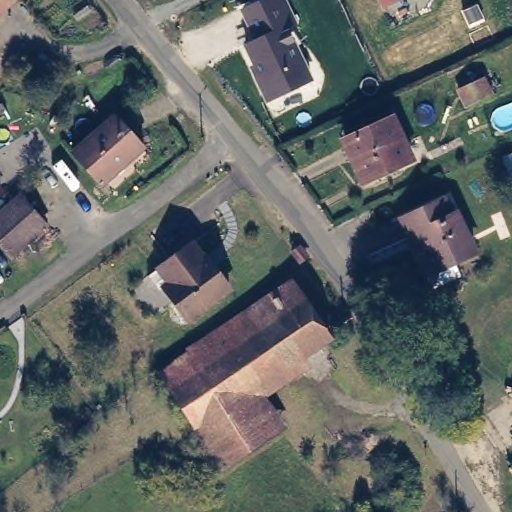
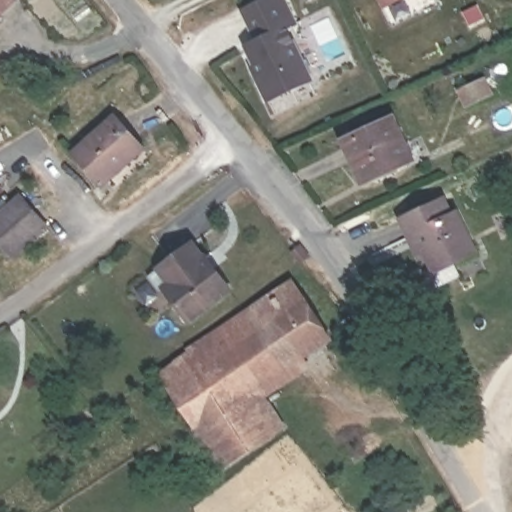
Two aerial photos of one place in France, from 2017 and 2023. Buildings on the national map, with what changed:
unchanged [(0,14),(0,0),(17,0),(0,14)]
unchanged [(257,0),(286,0),(297,24),(289,27),(312,81),(265,102),(249,66),(252,65),(244,45),(252,40),(239,9),(257,0)]
unchanged [(382,10),(377,0),(401,0),(382,10)]
unchanged [(149,148),(134,160),(131,157),(102,180),(75,150),(122,116),(149,148)]
unchanged [(384,120),(402,159),(387,166),(390,173),(366,184),(362,175),(355,179),(337,141),(384,120)]
unchanged [(2,190),(0,192),(0,187),(2,190)]
unchanged [(416,244),(409,230),(405,220),(399,209),(440,190),(445,201),(447,206),(451,205),(460,224),(471,244),(452,255),(457,266),(432,280),(425,264),(431,260),(422,241),(416,244)]
unchanged [(47,229),(10,257),(0,246),(0,219),(24,201),(47,229)]
unchanged [(212,270),(214,268),(235,296),(194,326),(170,295),(165,298),(154,283),(197,252),(212,270)]
unchanged [(207,336),(283,290),(292,301),(302,296),(331,339),(260,385),(279,413),(274,416),(213,457),(155,375),(207,336)]

